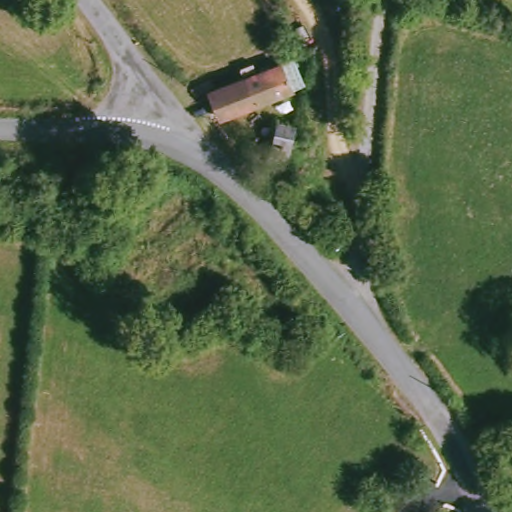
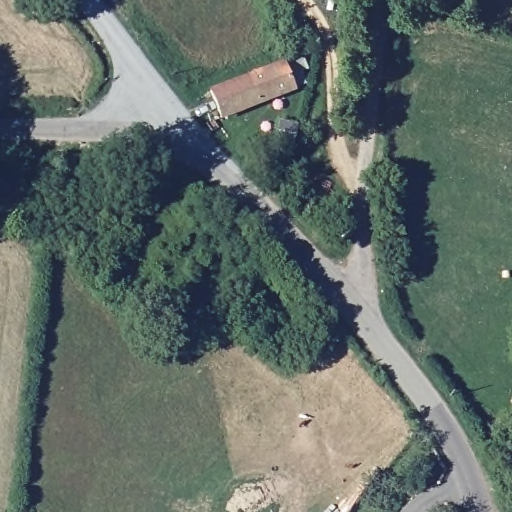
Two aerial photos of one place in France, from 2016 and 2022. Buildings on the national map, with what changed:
unchanged [(231,125),(219,94),(289,70),(298,99),(231,125)]
unchanged [(281,176),(261,169),(271,137),(290,142),(281,176)]

